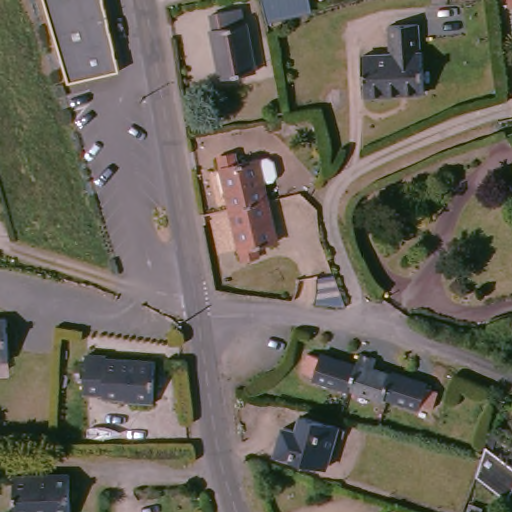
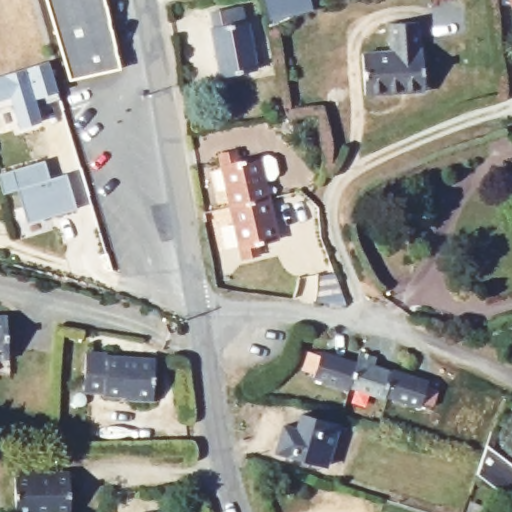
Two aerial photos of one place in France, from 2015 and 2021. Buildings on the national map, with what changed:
unchanged [(119,71),(69,82),(45,0),(104,0),(119,71)]
unchanged [(269,21),(264,0),(311,0),(314,10),(269,21)]
unchanged [(510,3),(510,0),(512,0),(512,3),(510,3)]
unchanged [(261,70),(226,77),(216,30),(218,30),(214,13),(245,7),(249,22),(251,22),(261,70)]
unchanged [(429,92),(371,96),(368,54),(395,53),(394,23),(422,22),(424,50),(428,50),(429,92)]
new [(42,122),(21,129),(13,106),(0,110),(0,77),(25,69),(42,122)]
unchanged [(219,154),(236,150),(239,162),(258,158),(268,155),(274,159),(277,173),(273,179),(264,181),(268,200),(231,208),(219,154)]
new [(21,190),(68,174),(79,208),(30,224),(19,190),(3,196),(0,187),(0,176),(15,171),(21,190)]
unchanged [(277,241),(258,245),(260,256),(243,260),(231,208),(268,200),(277,241)]
unchanged [(334,277),(344,307),(335,307),(312,304),(317,298),(319,293),(321,286),(319,280),(334,277)]
unchanged [(0,359),(0,319),(12,318),(13,358),(0,359)]
unchanged [(422,382),(421,386),(433,391),(427,408),(416,404),(414,409),(381,397),(381,400),(344,388),(343,391),(307,378),(308,376),(296,372),(303,352),(314,356),(314,353),(350,365),(354,352),(371,358),(368,368),(387,375),(389,371),(422,382)]
unchanged [(156,362),(154,405),(130,404),(130,399),(104,398),(104,395),(84,395),(86,357),(107,358),(107,360),(156,362)]
unchanged [(339,426),(338,427),(344,429),(342,437),(336,435),(326,468),(276,453),(284,427),(297,431),(301,415),(339,426)]
unchanged [(512,464),(512,498),(512,499),(499,489),(481,476),(488,456),(491,446),(512,464)]
unchanged [(43,512),(15,512),(14,472),(69,471),(70,511),(43,512)]
unchanged [(481,512),(466,512),(469,503),(483,508),(481,512)]

